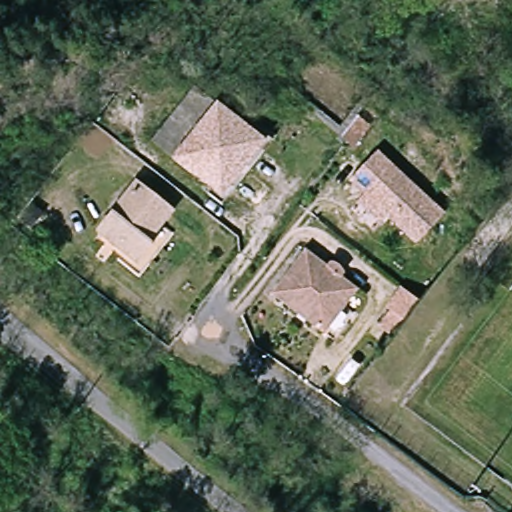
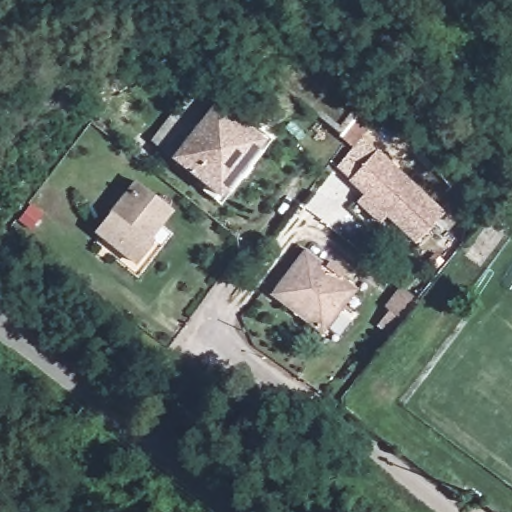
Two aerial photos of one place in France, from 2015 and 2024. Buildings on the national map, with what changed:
unchanged [(225,194),(158,142),(198,87),(266,139),(225,194)]
unchanged [(352,136),(338,125),(354,105),(367,115),(352,136)]
unchanged [(372,219),(359,210),(364,202),(348,190),(372,156),(382,163),(445,208),(422,242),(393,222),(388,230),(372,219)]
unchanged [(149,242),(153,245),(139,264),(98,233),(136,182),(173,210),(149,242)]
unchanged [(334,268),(350,281),(347,285),(361,296),(326,342),(275,302),(310,257),(331,273),(334,268)]
unchanged [(422,296),(410,313),(407,316),(390,305),(394,301),(405,285),(422,296)]

